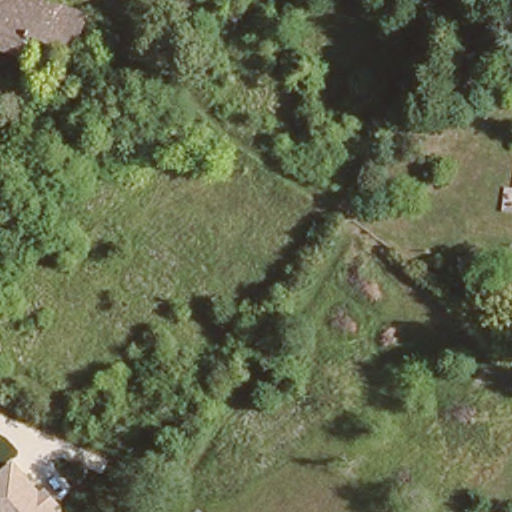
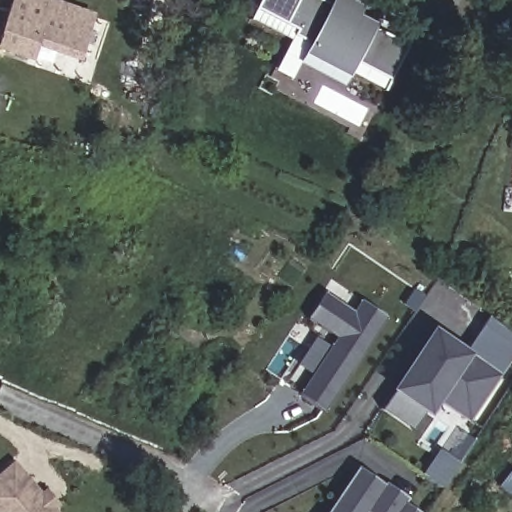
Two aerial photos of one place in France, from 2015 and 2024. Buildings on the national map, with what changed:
unchanged [(18,54),(0,46),(0,0),(51,0),(83,13),(66,50),(27,33),(18,54)]
new [(321,0),(328,4),(330,0),(350,0),(361,5),(356,15),(373,23),(370,28),(406,44),(383,91),(346,74),(344,78),(339,86),(295,64),(288,79),(272,70),(288,40),(248,19),(257,0),(321,0)]
new [(306,318),(324,292),(352,311),(360,300),(386,317),(322,412),(296,394),(308,373),(297,365),(315,338),(328,345),(334,337),(306,318)]
new [(512,333),(512,355),(500,374),(470,353),(465,350),(487,316),(512,333)]
new [(470,353),(500,374),(467,421),(436,400),(427,415),(423,412),(411,427),(381,406),(392,392),(386,389),(430,326),(470,353)]
unchanged [(0,474),(16,461),(41,491),(47,487),(63,507),(58,511),(58,512),(0,512),(0,474)]
new [(382,485),(384,481),(408,497),(404,503),(417,512),(367,512),(365,510),(363,512),(324,512),(356,466),(382,485)]

